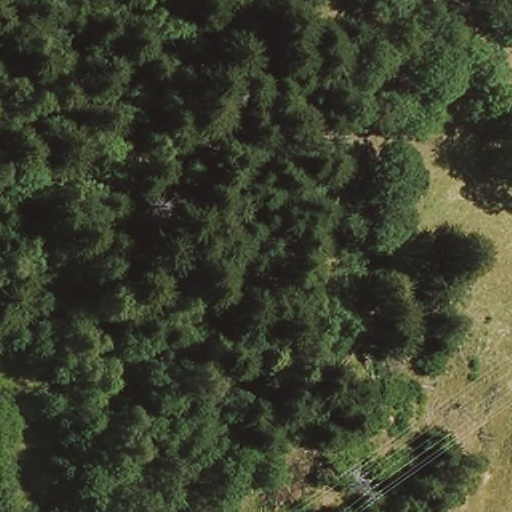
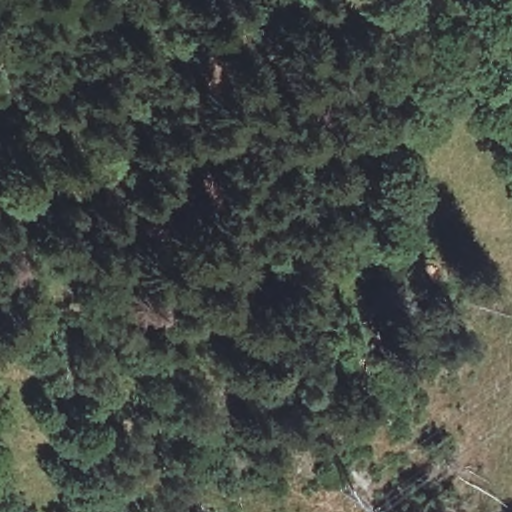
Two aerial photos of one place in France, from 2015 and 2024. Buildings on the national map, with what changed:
[]

